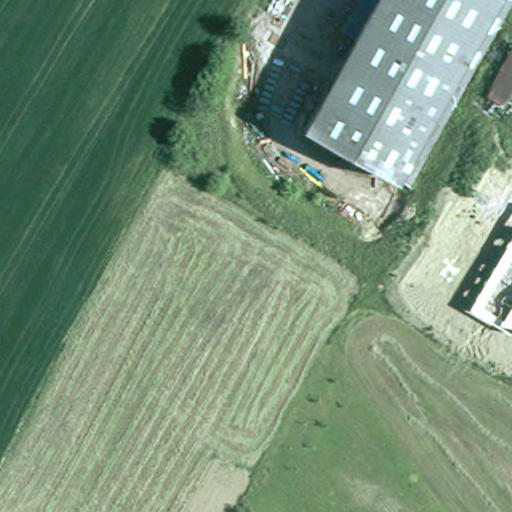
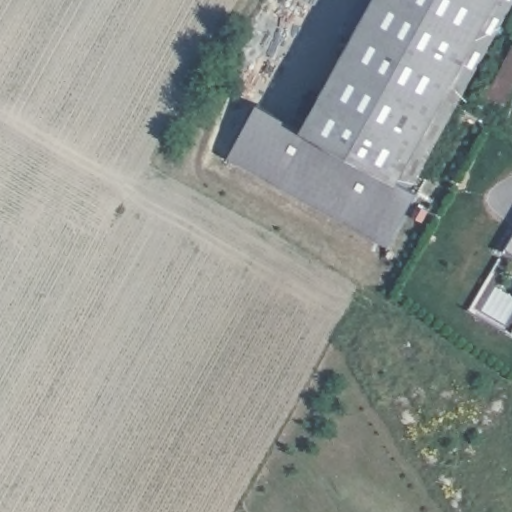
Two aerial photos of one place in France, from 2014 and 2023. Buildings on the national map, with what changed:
unchanged [(404,181),(300,123),(368,0),(505,0),(404,181)]
unchanged [(495,90),(512,58),(512,92),(509,97),(495,90)]
new [(417,194),(387,245),(229,157),(258,103),(417,194)]
unchanged [(469,310),(512,234),(512,333),(469,310)]

